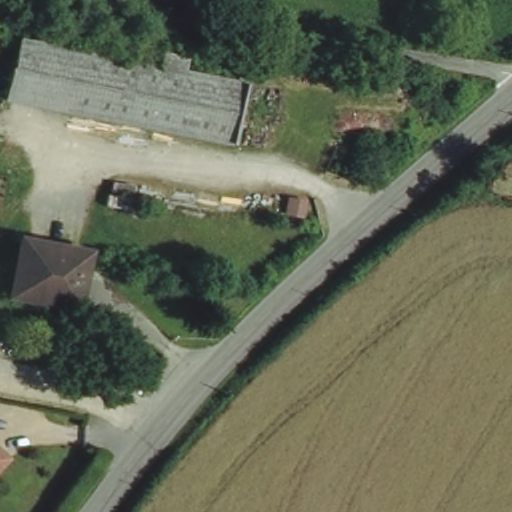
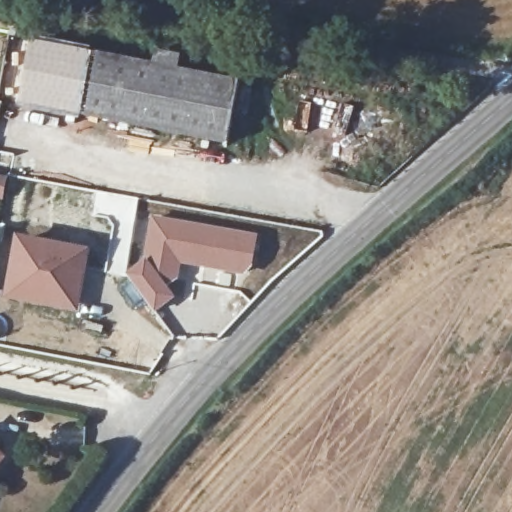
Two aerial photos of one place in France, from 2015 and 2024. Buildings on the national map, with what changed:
unchanged [(239,81),(225,142),(162,128),(4,94),(17,34),(153,62),(156,49),(179,53),(176,67),(183,69),(239,81)]
new [(0,199),(0,178),(5,179),(0,199)]
new [(138,262),(141,257),(150,213),(259,234),(252,265),(246,277),(182,265),(180,277),(169,286),(177,297),(154,313),(124,275),(138,262)]
unchanged [(36,298),(7,292),(21,235),(86,250),(76,295),(74,307),(36,298)]
unchanged [(1,453),(0,454),(0,452),(1,453)]

